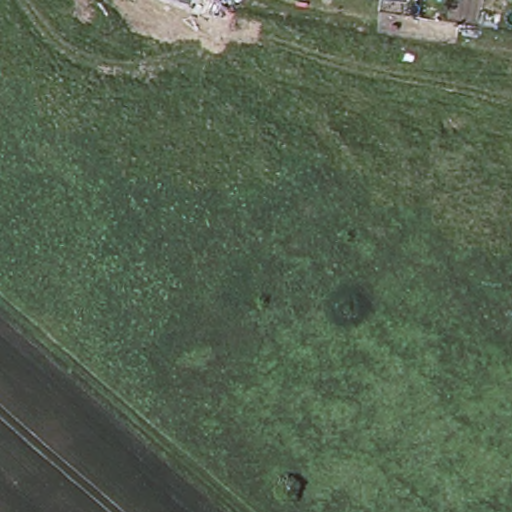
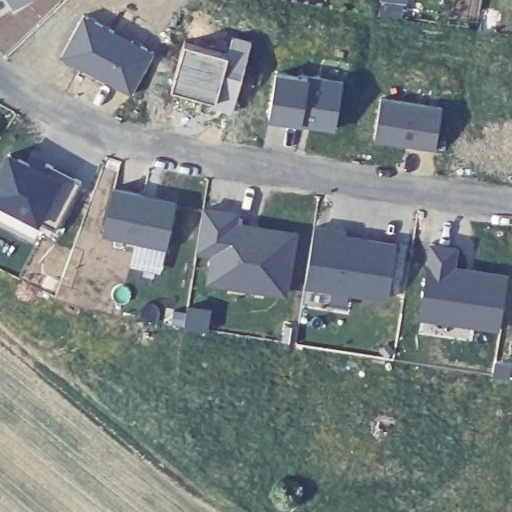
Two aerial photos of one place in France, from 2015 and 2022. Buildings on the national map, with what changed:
new [(13,0),(25,0),(17,5),(13,0)]
new [(153,56),(132,98),(61,61),(83,18),(153,56)]
new [(227,62),(233,40),(251,45),(233,117),(215,113),(216,106),(173,95),(185,51),(227,62)]
new [(308,76),(308,74),(343,80),(335,127),(311,123),(311,120),(302,118),(302,122),(268,117),(276,72),(308,76)]
new [(442,109),(437,154),(376,143),(382,100),(442,109)]
new [(0,200),(0,171),(9,153),(43,171),(47,163),(80,181),(55,228),(0,200)]
new [(145,195),(144,200),(153,202),(154,197),(175,201),(166,245),(103,231),(113,188),(145,195)]
new [(212,252),(197,250),(206,203),(241,210),(239,221),(299,230),(288,295),(206,282),(212,252)]
new [(315,222),(349,226),(348,233),(399,240),(390,300),(305,286),(315,222)]
new [(166,245),(162,262),(137,257),(141,240),(166,245)]
new [(431,240),(458,244),(455,263),(508,271),(499,328),(419,316),(431,240)]

